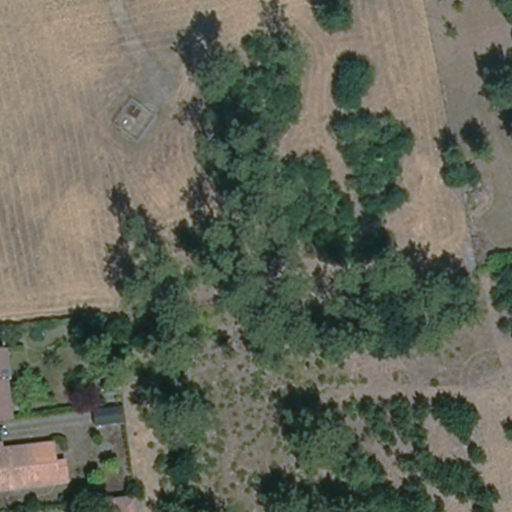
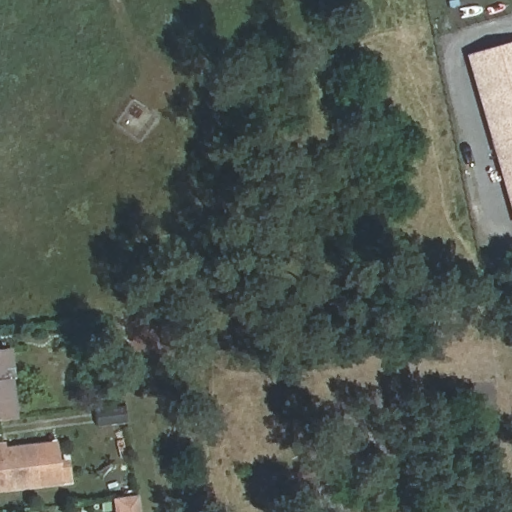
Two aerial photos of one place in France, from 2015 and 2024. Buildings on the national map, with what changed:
new [(512,42),(512,214),(467,56),(512,42)]
unchanged [(6,351),(11,420),(0,421),(0,351),(6,351)]
demolished [(108,399),(109,411),(95,412),(95,401),(108,399)]
unchanged [(120,409),(122,422),(97,425),(96,412),(120,409)]
demolished [(114,426),(116,440),(91,442),(90,429),(114,426)]
unchanged [(53,445),(55,461),(66,459),(69,481),(0,492),(0,453),(53,445)]
unchanged [(140,512),(118,512),(117,500),(137,497),(140,512)]

